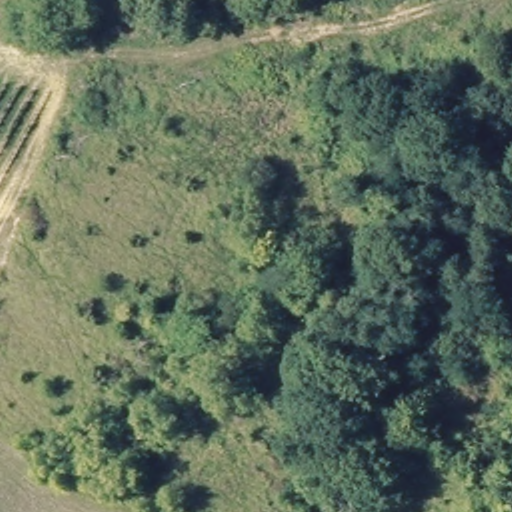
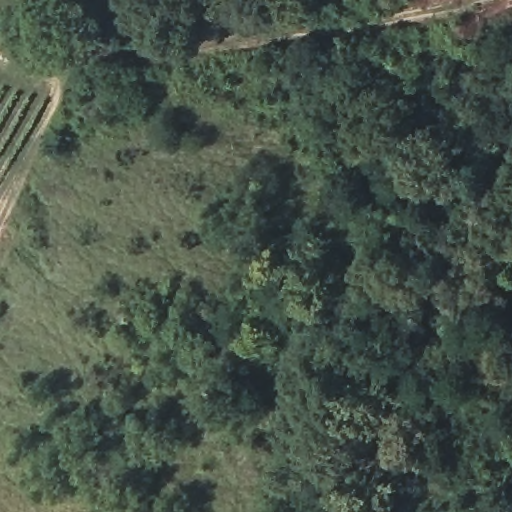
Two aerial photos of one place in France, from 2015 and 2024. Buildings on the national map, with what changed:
unchanged [(366,367),(379,377),(361,401),(349,391),(366,367)]

